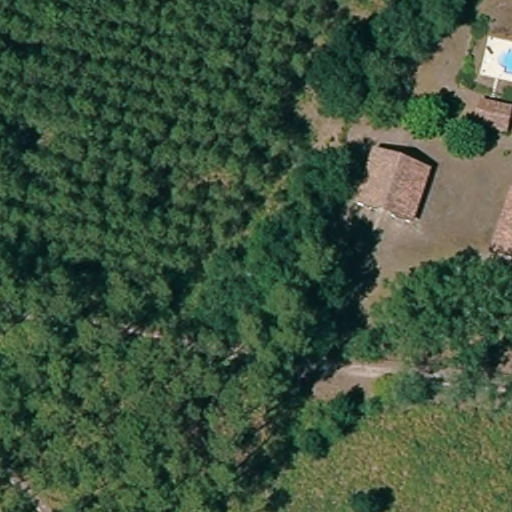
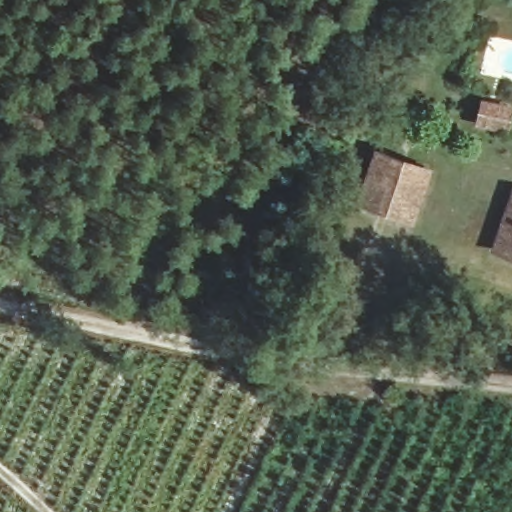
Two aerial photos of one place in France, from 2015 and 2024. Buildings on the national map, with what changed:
unchanged [(512,101),(512,128),(488,123),(495,96),(512,101)]
unchanged [(427,168),(406,216),(355,198),(370,151),(427,168)]
unchanged [(511,187),(512,187),(512,254),(492,247),(511,187)]

